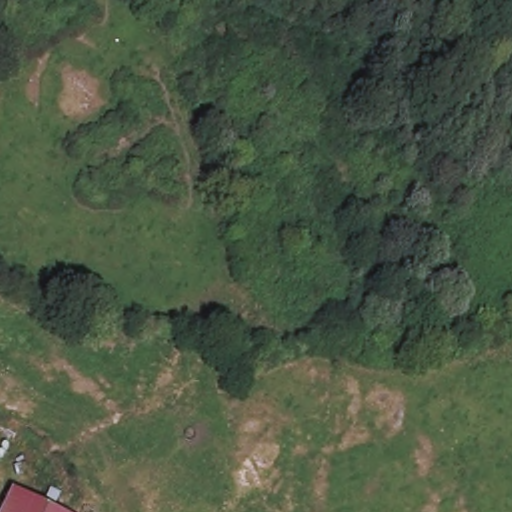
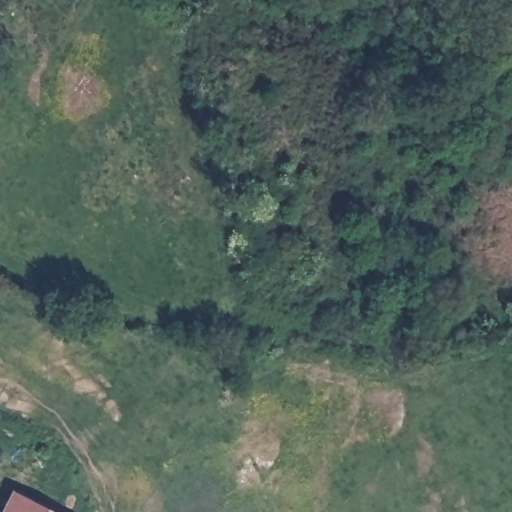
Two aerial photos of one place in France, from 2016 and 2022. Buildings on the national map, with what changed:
unchanged [(60,512),(0,512),(0,507),(10,487),(60,512)]

